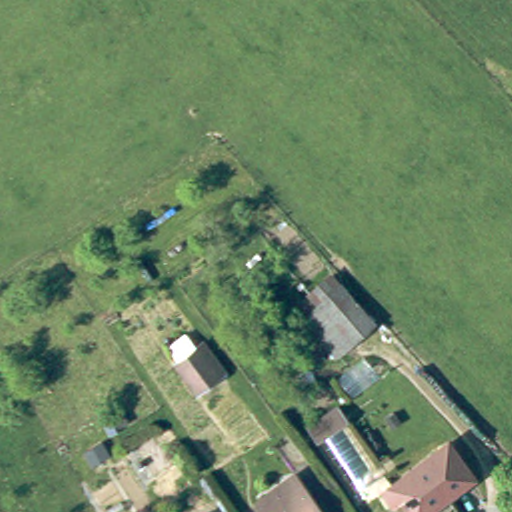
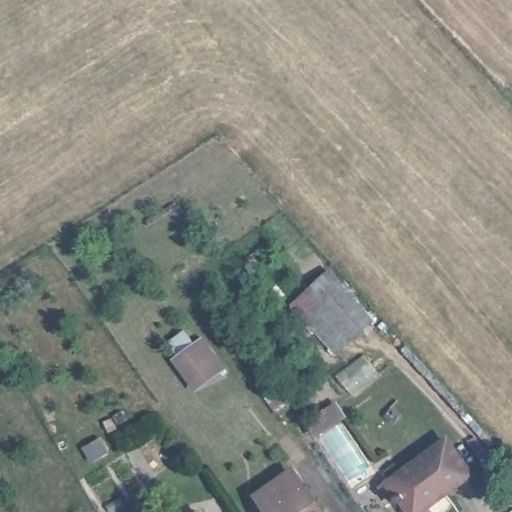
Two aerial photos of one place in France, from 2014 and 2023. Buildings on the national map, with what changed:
unchanged [(375,320),(337,356),(300,315),(314,303),(303,290),(328,268),(375,320)]
unchanged [(175,363),(195,347),(202,342),(225,372),(219,377),(198,393),(175,363)]
unchanged [(338,401),(345,410),(317,431),(310,422),(338,401)]
unchanged [(392,482),(450,444),(474,476),(421,512),(413,512),(402,497),(393,502),(385,487),(392,482)]
unchanged [(324,512),(271,512),(263,501),(299,477),(324,512)]

